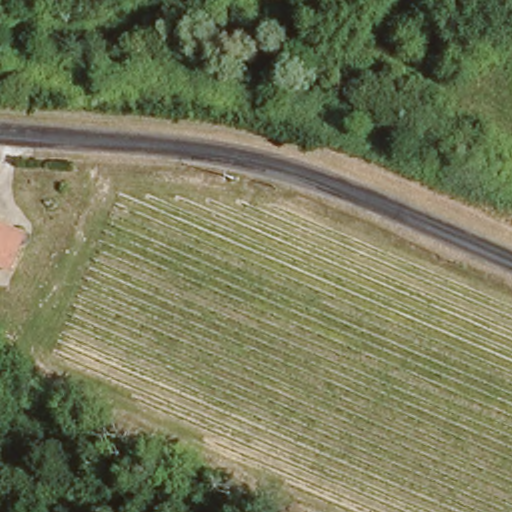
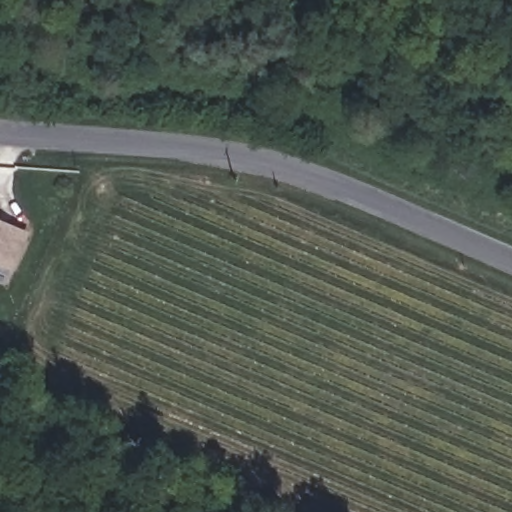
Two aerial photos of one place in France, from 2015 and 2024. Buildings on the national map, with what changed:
unchanged [(3,266),(0,264),(0,219),(20,228),(3,266)]

